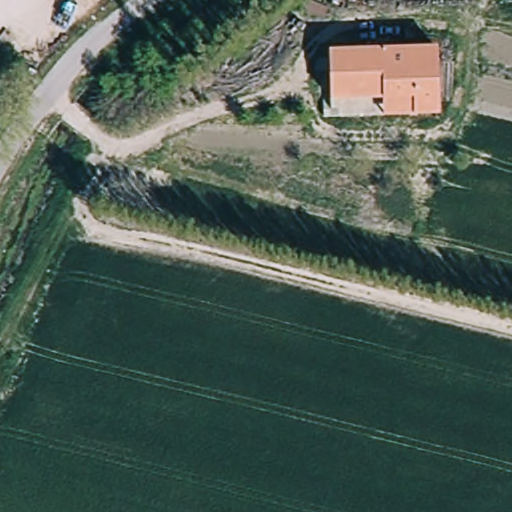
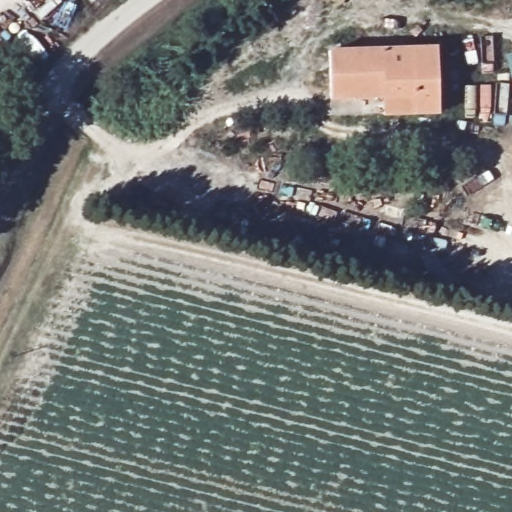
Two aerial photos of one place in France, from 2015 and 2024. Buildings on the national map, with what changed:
unchanged [(437,44),(438,111),(384,113),(383,97),(331,99),(329,46),(437,44)]

